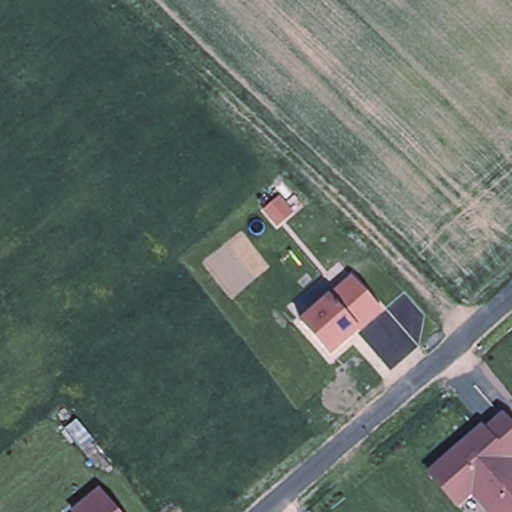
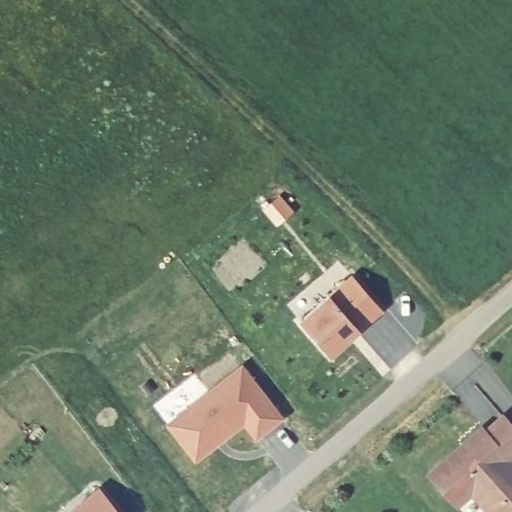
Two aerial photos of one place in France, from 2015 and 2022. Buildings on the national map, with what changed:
unchanged [(384,310),(363,331),(332,357),(299,322),(330,294),(353,275),(384,310)]
new [(282,418),(256,437),(245,421),(196,459),(169,424),(242,367),(282,418)]
unchanged [(430,473),(481,426),(485,430),(497,420),(503,415),(512,425),(512,455),(509,457),(512,462),(512,512),(490,512),(472,490),(457,503),(430,473)]
unchanged [(71,512),(71,511),(99,486),(121,512),(71,512)]

